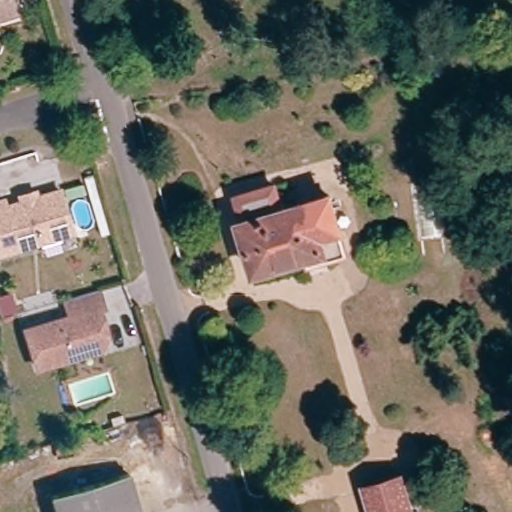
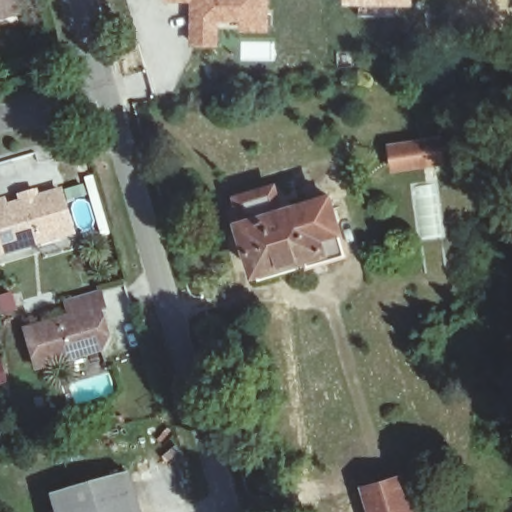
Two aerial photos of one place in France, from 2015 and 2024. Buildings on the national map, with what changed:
unchanged [(15,16),(0,20),(0,0),(10,0),(15,16)]
new [(189,2),(164,1),(164,0),(270,0),(270,32),(240,32),(240,22),(221,21),(220,47),(188,47),(189,2)]
new [(344,0),(413,0),(413,7),(344,6),(344,0)]
new [(442,135),(447,164),(393,171),(388,142),(442,135)]
unchanged [(330,254),(330,260),(305,270),(301,260),(246,277),(230,229),(239,226),(232,204),(230,199),(262,189),(273,184),(276,191),(284,212),(313,203),(330,254)]
new [(310,197),(332,191),(345,235),(342,236),(346,251),(330,254),(325,237),(313,203),(310,197)]
unchanged [(0,208),(5,207),(6,212),(22,207),(21,202),(35,198),(37,204),(61,197),(74,238),(0,259),(0,208)]
unchanged [(98,353),(35,372),(22,335),(67,322),(62,305),(95,295),(101,312),(96,314),(105,341),(98,353)]
unchanged [(0,318),(0,302),(6,301),(11,315),(0,318)]
unchanged [(400,476),(406,496),(411,512),(373,512),(365,487),(400,476)]
unchanged [(127,480),(136,512),(51,512),(48,500),(127,480)]

